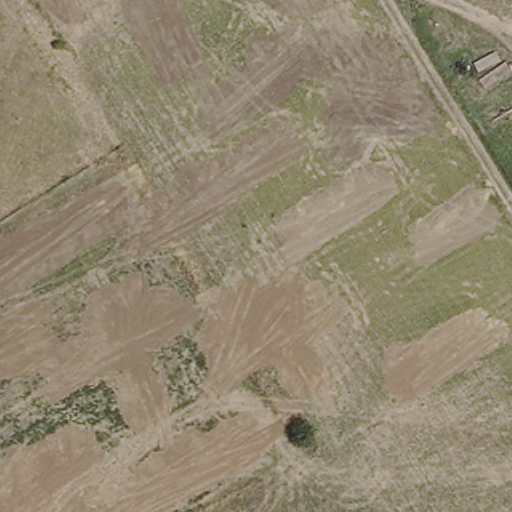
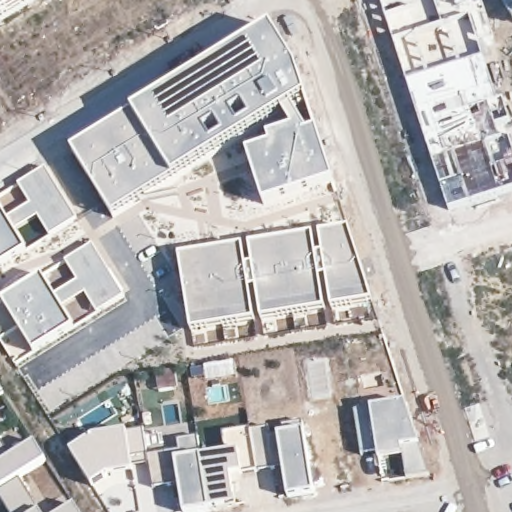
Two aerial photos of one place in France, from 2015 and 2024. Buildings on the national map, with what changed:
new [(0,20),(0,0),(33,0),(0,20)]
new [(491,37),(481,40),(512,131),(512,191),(449,211),(380,0),(480,0),(491,37)]
new [(511,0),(512,0),(512,2),(511,0)]
new [(126,118),(273,29),(297,70),(308,102),(283,116),(216,155),(175,183),(113,220),(71,152),(126,118)]
new [(270,146),(267,138),(290,130),(283,116),(308,102),(334,185),(264,208),(246,154),(270,146)]
new [(27,205),(23,200),(18,188),(16,185),(46,168),(77,221),(49,238),(38,221),(18,232),(8,217),(27,205)]
new [(4,210),(8,217),(18,232),(29,249),(0,267),(0,204),(4,210)]
new [(349,230),(372,303),(331,311),(329,301),(321,271),(315,235),(349,230)]
new [(315,235),(321,271),(329,301),(326,301),(327,312),(274,321),(276,331),(265,333),(249,246),(315,235)]
new [(76,283),(65,262),(93,246),(126,299),(95,318),(84,298),(64,308),(55,296),(76,283)]
new [(243,247),(253,323),(214,331),(192,335),(179,257),(243,247)]
new [(44,277),(55,296),(64,308),(76,329),(32,355),(1,303),(44,277)]
new [(5,398),(0,400),(0,390),(5,398)]
new [(406,401),(429,475),(405,479),(402,459),(379,464),(376,456),(361,457),(353,411),(406,401)]
new [(284,435),(282,425),(303,422),(304,434),(314,495),(287,499),(281,469),(277,438),(284,435)]
new [(198,437),(201,455),(225,452),(223,435),(276,430),(281,469),(234,478),(236,506),(205,512),(182,512),(178,486),(152,489),(148,463),(134,466),(135,472),(127,474),(92,488),(70,452),(95,438),(142,431),(147,457),(180,453),(178,441),(198,437)]
new [(13,460),(35,446),(47,464),(21,481),(0,493),(0,440),(13,460)]
new [(40,512),(8,512),(0,500),(0,493),(21,481),(40,512)]
new [(78,512),(70,512),(76,509),(78,512)]

